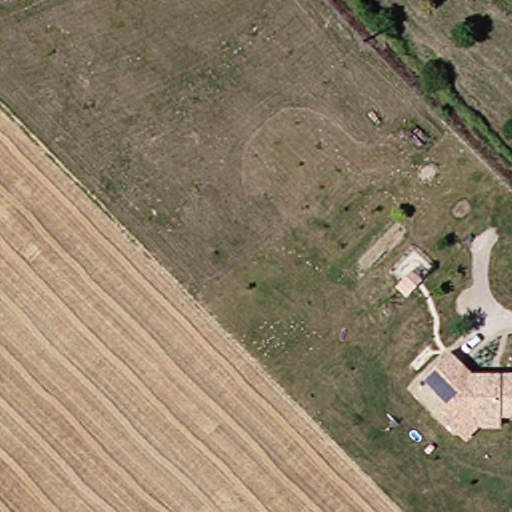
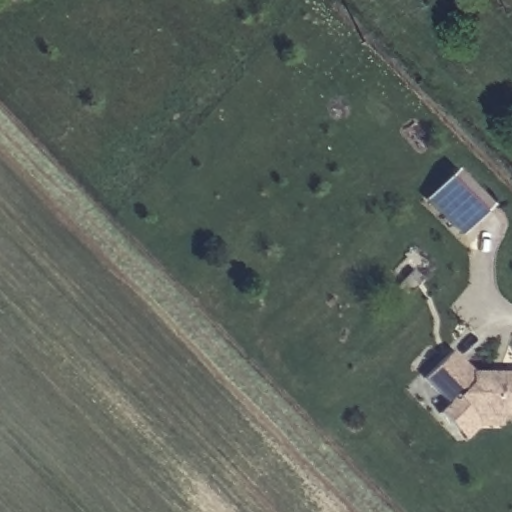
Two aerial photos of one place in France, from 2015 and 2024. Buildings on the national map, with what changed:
new [(455,171),(490,206),(461,236),(426,201),(455,171)]
unchanged [(463,440),(453,428),(440,414),(448,405),(424,377),(451,351),(473,375),(492,375),(491,382),(501,382),(502,375),(512,375),(512,417),(501,417),(501,427),(481,426),(463,440)]

